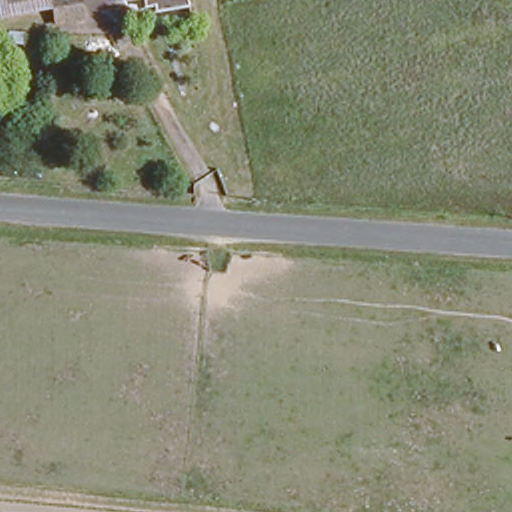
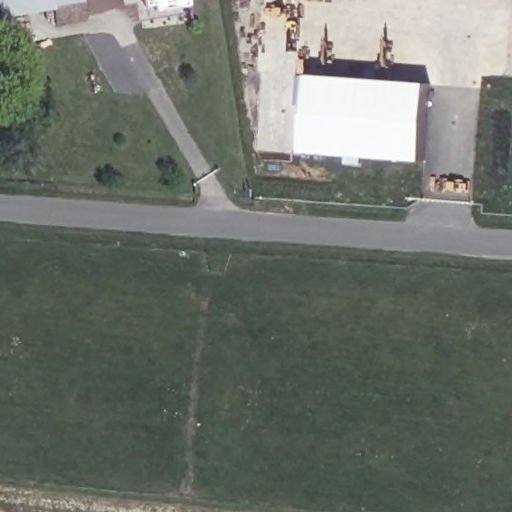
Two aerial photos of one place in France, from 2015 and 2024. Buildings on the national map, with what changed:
unchanged [(3,11),(1,0),(53,0),(53,2),(3,11)]
unchanged [(56,19),(53,2),(53,0),(84,0),(86,14),(56,19)]
unchanged [(154,9),(153,3),(146,4),(145,0),(185,0),(186,5),(154,9)]
unchanged [(19,37),(20,25),(39,25),(39,38),(19,37)]
unchanged [(40,79),(42,64),(44,52),(55,54),(54,62),(52,80),(40,79)]
new [(421,160),(298,152),(303,73),(426,81),(421,160)]
new [(340,154),(355,155),(355,163),(339,163),(340,154)]

